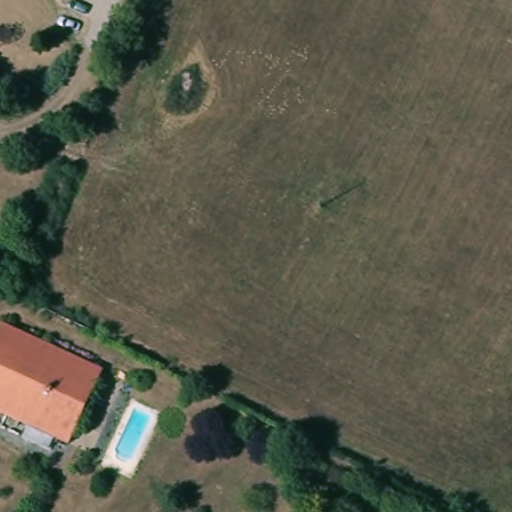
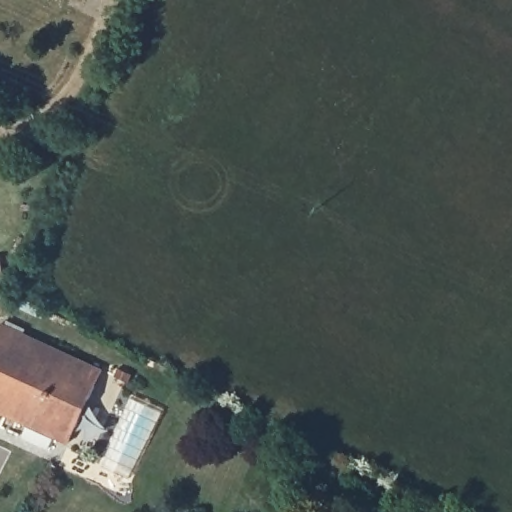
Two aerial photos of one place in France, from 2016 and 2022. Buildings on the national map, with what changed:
unchanged [(102,366),(66,446),(56,441),(48,459),(19,445),(27,427),(0,414),(0,326),(1,324),(102,366)]

